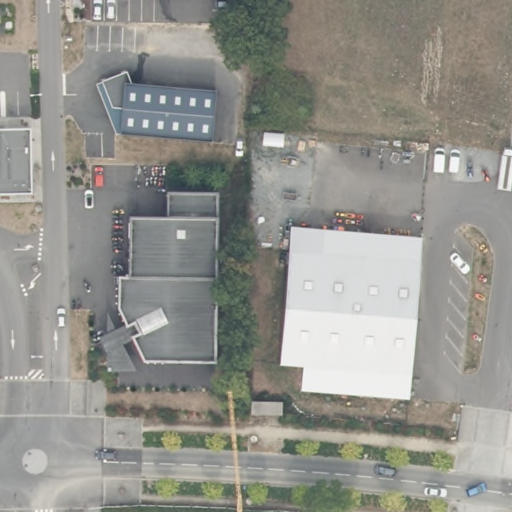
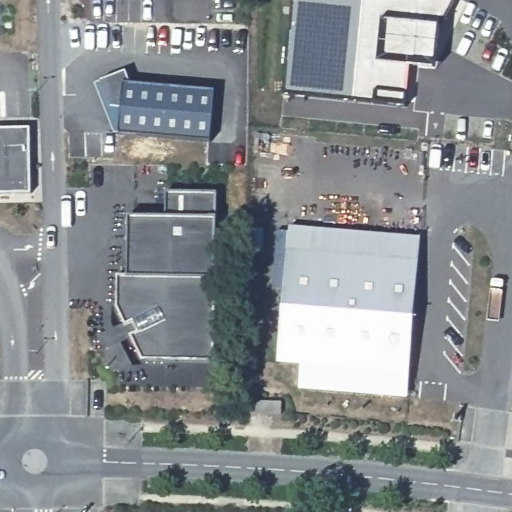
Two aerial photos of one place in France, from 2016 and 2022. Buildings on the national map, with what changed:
new [(435,69),(410,66),(405,106),(283,94),(292,0),(455,0),(439,32),(435,69)]
unchanged [(125,72),(130,85),(213,93),(209,146),(113,137),(94,86),(125,72)]
unchanged [(34,192),(0,192),(0,127),(33,126),(34,192)]
unchanged [(215,193),(214,362),(140,363),(130,341),(121,346),(135,371),(105,372),(106,355),(97,340),(124,326),(117,311),(117,276),(127,277),(127,217),(165,217),(166,194),(215,193)]
unchanged [(408,401),(297,391),(299,368),(276,365),(287,251),(289,226),(322,229),(421,237),(408,401)]

